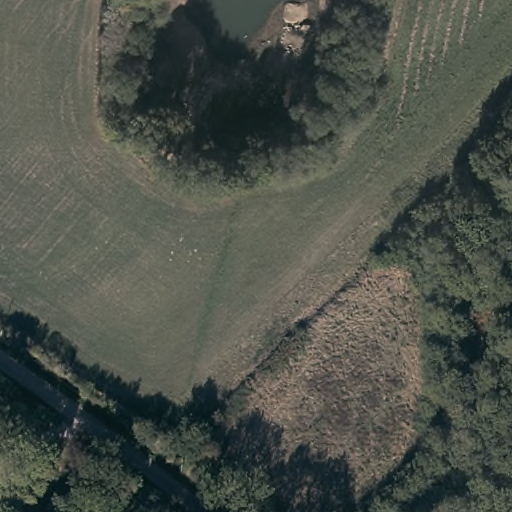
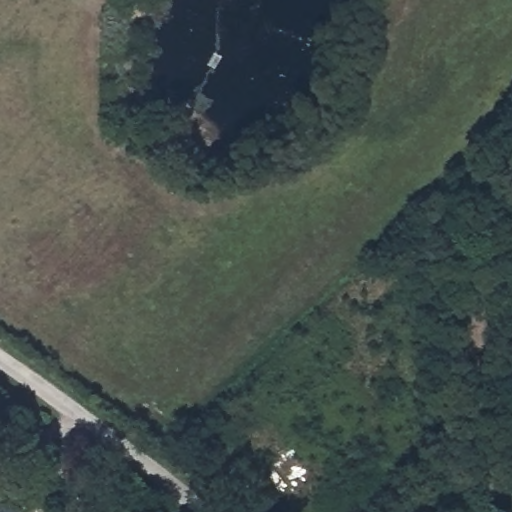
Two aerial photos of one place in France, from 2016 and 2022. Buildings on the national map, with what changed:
unchanged [(28,491),(19,505),(8,497),(17,483),(28,491)]
unchanged [(15,510),(14,512),(0,512),(0,499),(15,510)]

